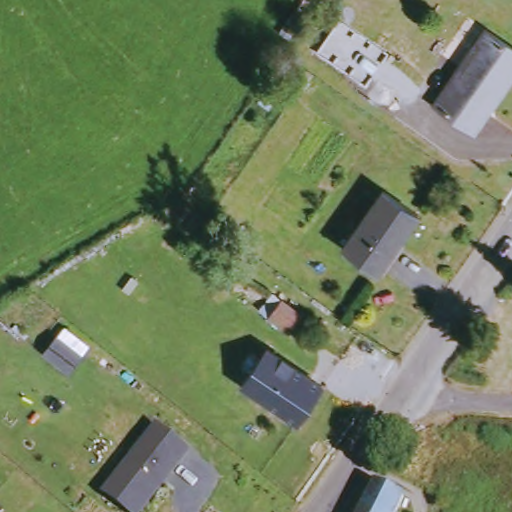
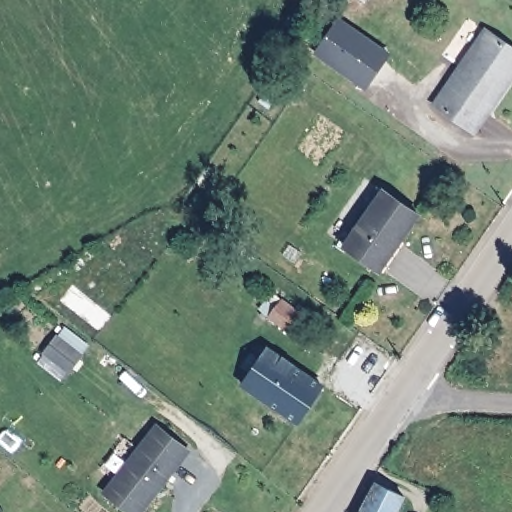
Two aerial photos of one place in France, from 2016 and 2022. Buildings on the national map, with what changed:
new [(366,91),(313,56),(338,17),(390,55),(366,91)]
unchanged [(479,135),(439,107),(490,32),(512,47),(512,87),(479,135)]
unchanged [(382,273),(347,250),(385,194),(421,217),(382,273)]
unchanged [(294,308),(302,313),(290,331),(268,317),(280,299),(294,308)]
unchanged [(325,387),(300,421),(300,423),(246,386),(245,386),(270,350),(325,387)]
unchanged [(104,492),(157,424),(189,449),(139,512),(129,512),(104,492)]
unchanged [(383,482),(410,496),(401,512),(367,512),(378,489),(383,482)]

